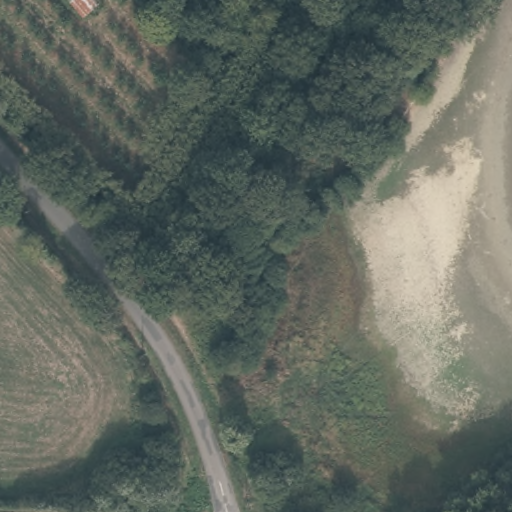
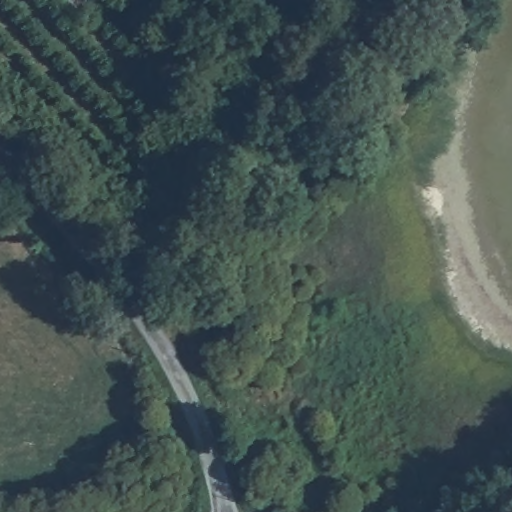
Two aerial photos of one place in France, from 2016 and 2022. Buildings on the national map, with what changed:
unchanged [(62,0),(99,0),(84,20),(62,0)]

